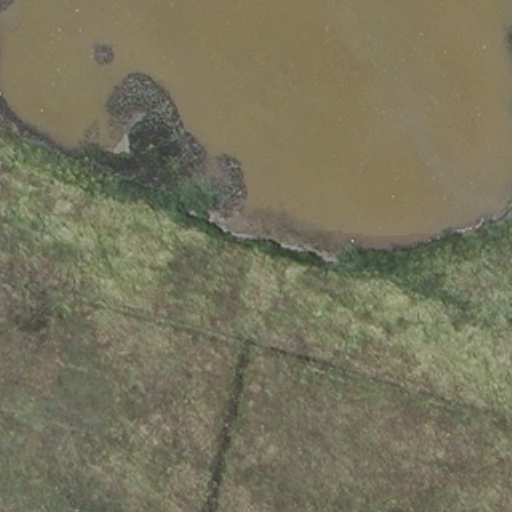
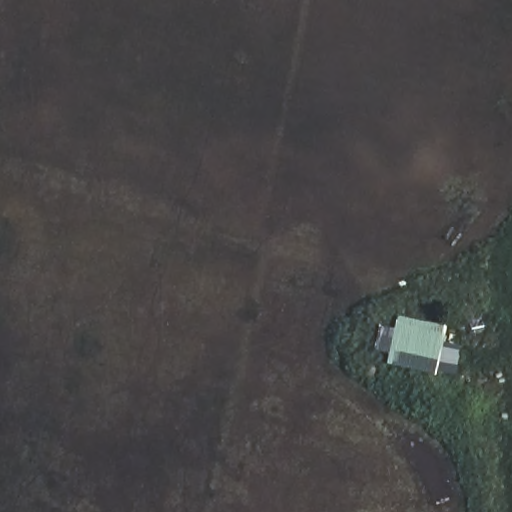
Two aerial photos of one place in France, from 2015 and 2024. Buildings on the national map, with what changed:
new [(396,327),(398,315),(448,327),(446,342),(463,346),(456,376),(439,372),(438,375),(388,363),(391,354),(376,351),(382,325),(396,327)]

